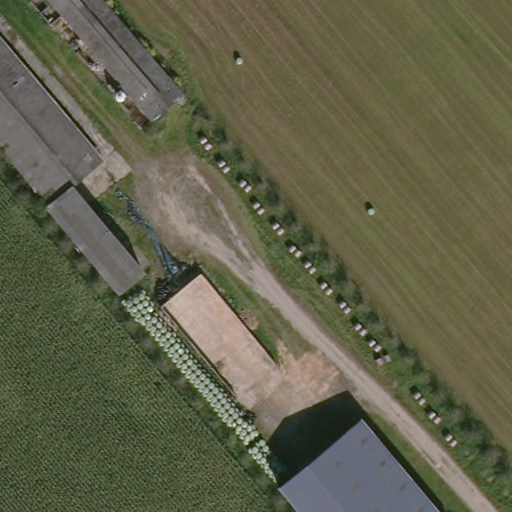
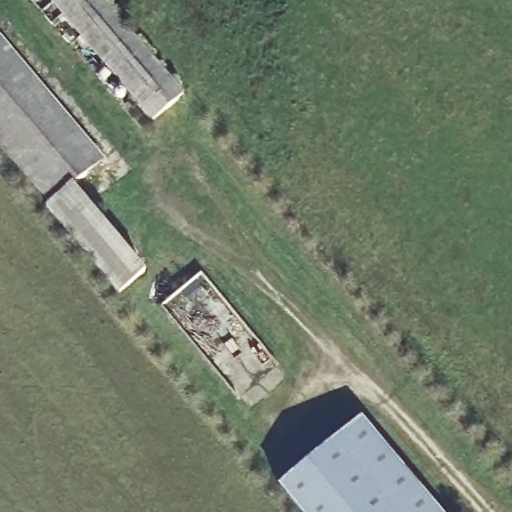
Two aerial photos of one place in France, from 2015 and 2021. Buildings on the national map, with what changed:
unchanged [(98,0),(182,101),(155,125),(50,0),(98,0)]
unchanged [(68,188),(141,274),(115,295),(42,209),(46,206),(0,150),(0,44),(98,163),(68,188)]
unchanged [(277,488),(359,423),(429,512),(296,512),(277,488)]

